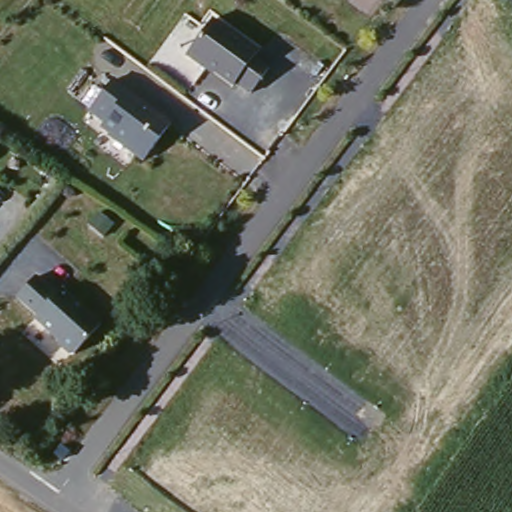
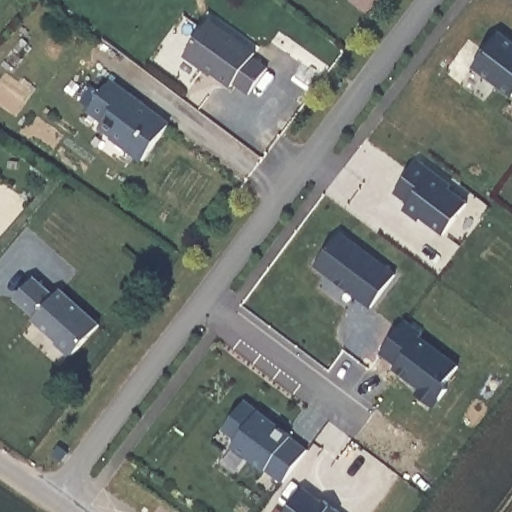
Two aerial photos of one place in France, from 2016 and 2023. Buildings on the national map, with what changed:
unchanged [(273,63),(250,94),(237,85),(232,91),(186,55),(214,19),(273,63)]
new [(510,93),(471,63),(496,31),(512,42),(512,91),(510,93)]
unchanged [(173,123),(141,165),(101,131),(106,123),(93,111),(114,78),(173,123)]
new [(417,215),(415,217),(400,205),(405,199),(391,188),(414,159),(446,184),(444,186),(463,200),(439,231),(417,215)]
new [(311,261),(335,230),(390,272),(366,303),(311,261)]
unchanged [(104,323),(81,355),(78,356),(65,345),(64,342),(40,323),(42,320),(20,303),(36,281),(57,298),(62,291),(104,323)]
new [(412,326),(460,369),(459,388),(439,407),(419,392),(420,382),(386,355),(412,326)]
new [(232,443),(237,437),(223,426),(243,399),(307,447),(282,480),(232,443)]
new [(302,487),(321,501),(324,498),(339,509),(337,512),(284,512),(302,487)]

